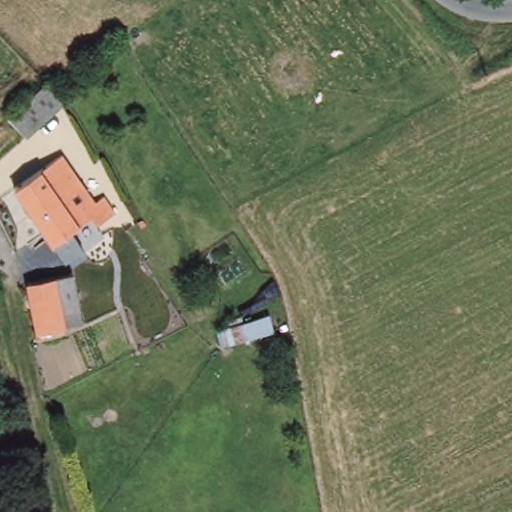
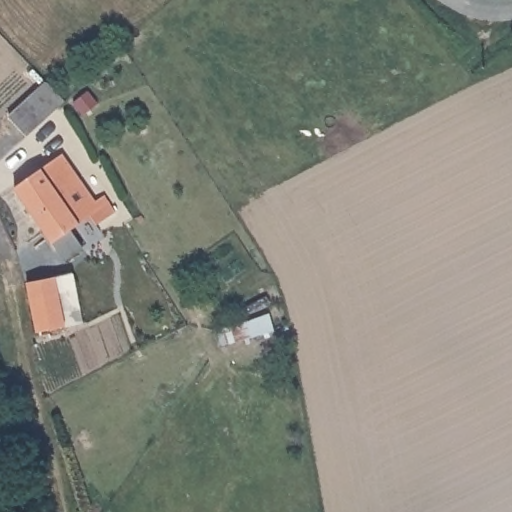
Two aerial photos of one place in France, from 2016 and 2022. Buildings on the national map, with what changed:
unchanged [(28,138),(8,117),(47,82),(67,104),(28,138)]
unchanged [(84,250),(66,261),(16,190),(64,156),(96,202),(105,196),(116,214),(98,227),(104,236),(84,250)]
unchanged [(84,323),(37,333),(29,285),(73,274),(84,323)]

